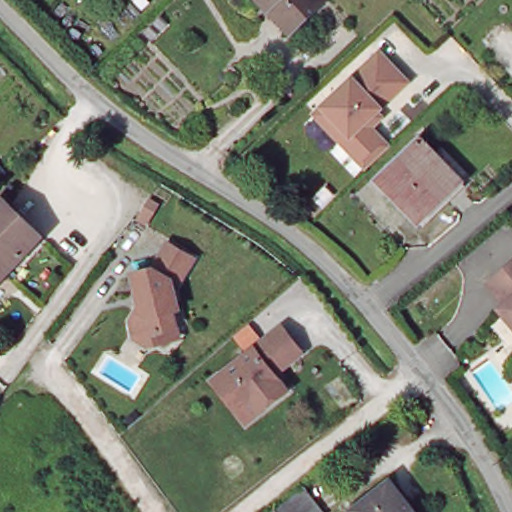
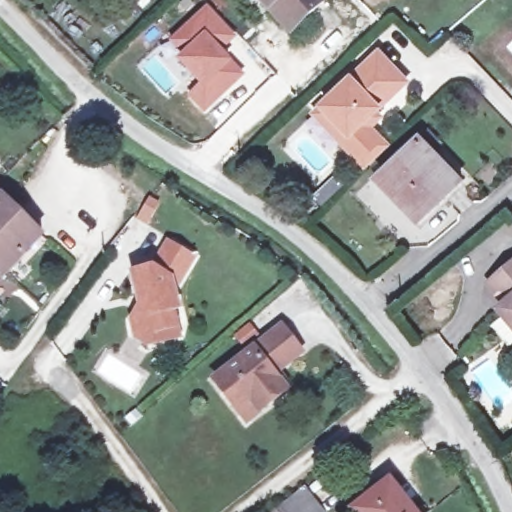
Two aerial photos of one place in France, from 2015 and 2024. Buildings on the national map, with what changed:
unchanged [(293,28),(269,0),(324,0),(293,28)]
new [(207,3),(237,35),(224,49),(245,74),(202,114),(185,95),(198,84),(175,57),(180,54),(167,39),(207,3)]
unchanged [(412,81),(385,105),(379,112),(384,117),(375,127),(392,146),(369,170),(315,114),(322,105),(355,74),(382,50),(412,81)]
unchanged [(378,174),(419,136),(459,177),(417,215),(378,174)]
unchanged [(5,199),(45,235),(0,281),(0,203),(5,199)]
unchanged [(163,338),(147,342),(134,334),(130,318),(140,302),(137,292),(132,270),(152,265),(167,240),(192,255),(177,281),(174,280),(172,282),(177,305),(172,306),(176,323),(179,333),(163,338)]
unchanged [(495,330),(499,326),(497,324),(499,322),(482,302),(512,279),(512,353),(503,342),(495,330)]
unchanged [(232,401),(214,377),(281,324),(300,349),(273,370),(286,387),(259,408),(246,418),(232,401)]
unchanged [(2,390),(0,391),(0,387),(2,390)]
unchanged [(390,483),(414,512),(357,512),(357,511),(390,483)]
unchanged [(318,512),(275,512),(300,491),(318,512)]

